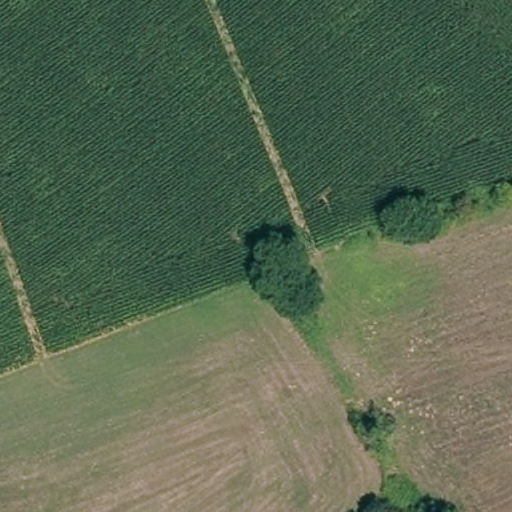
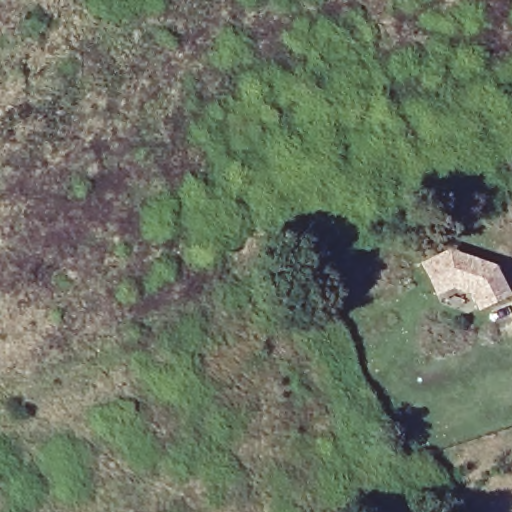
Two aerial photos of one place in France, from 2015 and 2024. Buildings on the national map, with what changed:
new [(465,295),(449,291),(433,298),(417,264),(448,249),(496,269),(508,298),(474,313),(465,295)]

